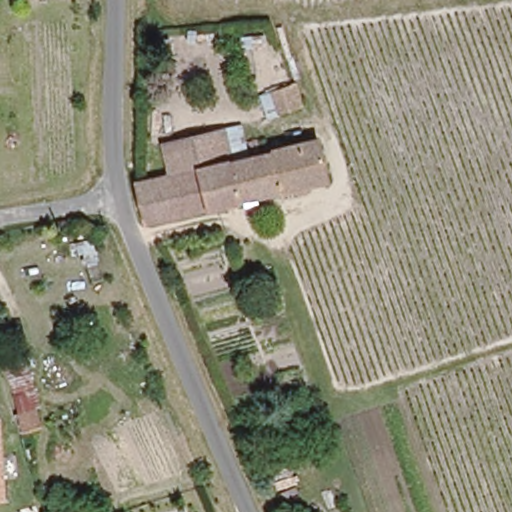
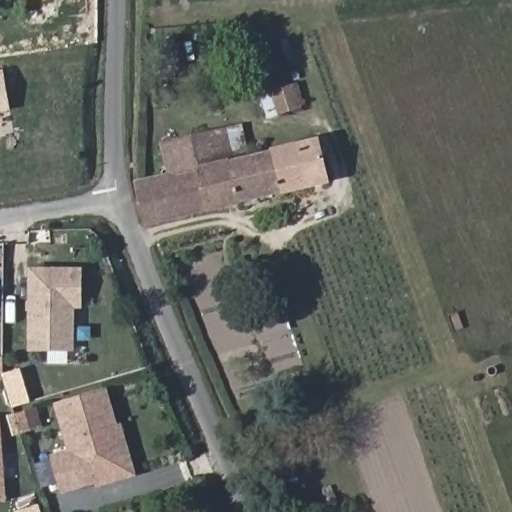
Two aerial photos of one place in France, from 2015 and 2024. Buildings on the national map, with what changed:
new [(0,71),(4,71),(11,111),(0,113),(0,71)]
unchanged [(303,108),(266,119),(259,96),(295,84),(303,108)]
unchanged [(243,123),(250,156),(197,167),(190,136),(243,123)]
unchanged [(197,167),(250,156),(304,144),(312,184),(147,220),(137,180),(170,172),(164,141),(190,136),(197,167)]
new [(80,271),(79,306),(72,305),(72,350),(31,348),(31,270),(80,271)]
unchanged [(51,441),(27,447),(2,363),(29,357),(51,441)]
new [(122,423),(136,476),(98,487),(96,482),(62,494),(51,455),(67,450),(54,403),(107,387),(118,424),(122,423)]
unchanged [(0,419),(2,419),(7,501),(0,501),(0,419)]

